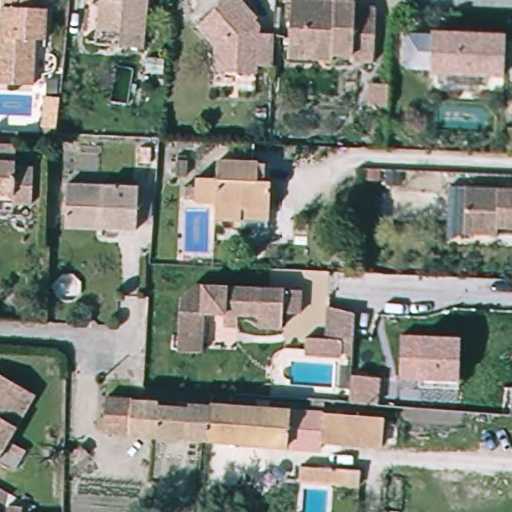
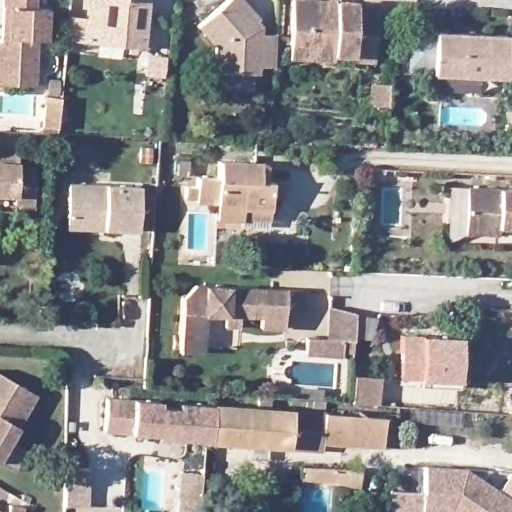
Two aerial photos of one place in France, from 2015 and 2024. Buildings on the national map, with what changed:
unchanged [(38,10),(51,11),(50,40),(40,40),(38,86),(0,85),(1,45),(4,45),(6,10),(6,0),(38,0),(38,10)]
unchanged [(148,50),(126,49),(127,33),(102,31),(105,0),(152,0),(148,50)]
unchanged [(277,66),(261,65),(260,73),(218,71),(219,46),(201,27),(231,0),(244,0),(261,20),(259,22),(263,27),(263,35),(278,35),(277,52),(277,66)]
unchanged [(287,59),(288,45),(290,0),(354,4),(354,9),(375,10),(372,62),(350,61),(350,56),(331,55),(330,60),(287,59)]
unchanged [(504,36),(502,76),(430,72),(431,32),(504,36)]
unchanged [(385,90),(385,108),(370,107),(370,88),(385,89),(385,90)]
unchanged [(507,131),(512,131),(512,154),(506,154),(507,131)]
unchanged [(39,200),(20,199),(20,192),(0,190),(0,155),(23,156),(23,162),(41,163),(39,200)]
unchanged [(268,177),(276,177),(273,215),(220,214),(221,199),(200,197),(202,175),(222,175),(223,157),(268,160),(268,177)]
new [(386,169),(385,182),(370,182),(371,168),(386,169)]
unchanged [(70,218),(71,185),(143,187),(141,232),(106,231),(69,230),(70,218)]
unchanged [(495,240),(462,239),(464,193),(512,195),(512,233),(495,232),(495,240)]
unchanged [(240,333),(241,320),(227,319),(206,318),(204,357),(181,357),(183,305),(198,290),(304,295),(303,319),(286,318),(285,333),(262,332),(262,320),(255,320),(254,334),(240,333)]
unchanged [(350,357),(339,356),(340,345),(327,345),(329,311),(353,318),(350,357)]
unchanged [(459,338),(457,381),(399,378),(400,335),(459,338)]
unchanged [(38,392),(0,460),(0,371),(38,392)]
new [(350,375),(378,377),(375,405),(348,402),(350,375)]
unchanged [(216,441),(164,438),(165,435),(113,431),(115,397),(168,401),(168,405),(197,407),(198,404),(218,405),(216,441)]
unchanged [(300,410),(298,447),(216,441),(218,405),(300,410)]
unchanged [(383,417),(381,444),(321,440),(323,413),(383,417)]
unchanged [(87,455),(76,461),(71,453),(81,446),(87,455)]
unchanged [(360,486),(346,486),(346,485),(334,483),(334,482),(300,480),(301,467),(360,470),(360,486)]
new [(470,473),(512,502),(512,512),(427,512),(430,470),(470,473)]
new [(405,512),(390,511),(390,492),(420,493),(420,512),(405,512)]

